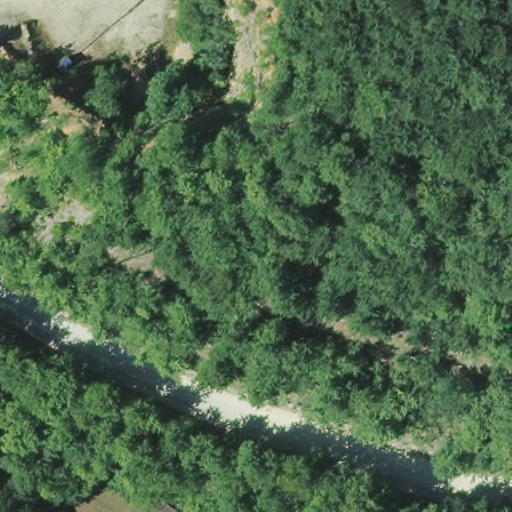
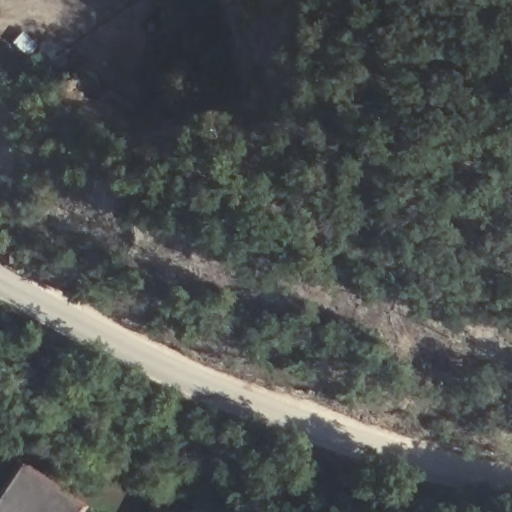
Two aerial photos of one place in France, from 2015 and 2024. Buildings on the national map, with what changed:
new [(0,498),(23,464),(90,509),(88,512),(0,512),(0,498)]
unchanged [(171,504),(184,512),(167,512),(171,504)]

